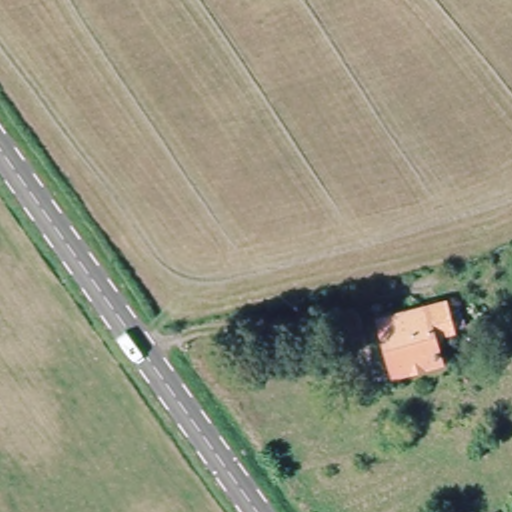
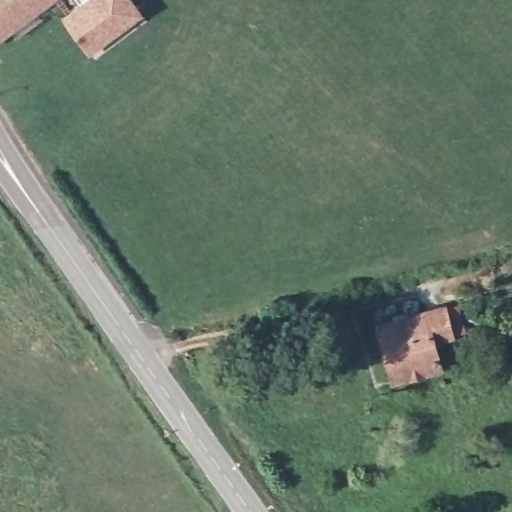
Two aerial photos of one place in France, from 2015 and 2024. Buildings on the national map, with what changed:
new [(51,0),(0,39),(0,0),(51,0)]
new [(130,0),(140,13),(90,50),(66,18),(90,0),(130,0)]
unchanged [(425,309),(447,302),(456,327),(433,335),(443,367),(423,372),(425,377),(404,382),(401,377),(396,379),(384,344),(378,324),(425,309)]

